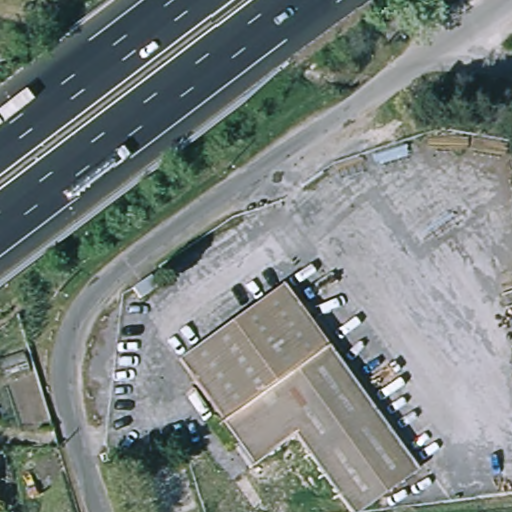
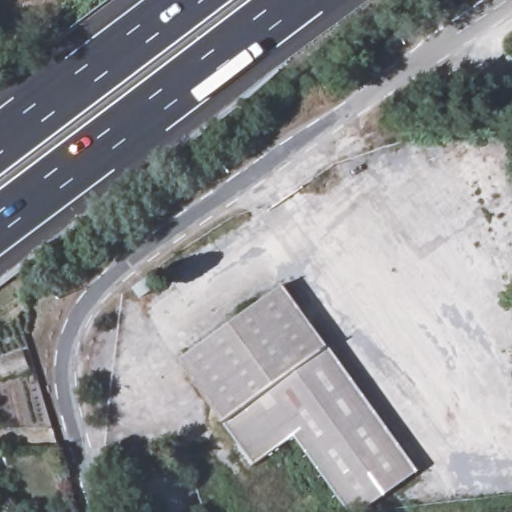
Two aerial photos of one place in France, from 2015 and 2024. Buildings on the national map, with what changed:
unchanged [(183,359),(282,286),(414,472),(357,512),(353,512),(297,434),(256,462),(183,359)]

